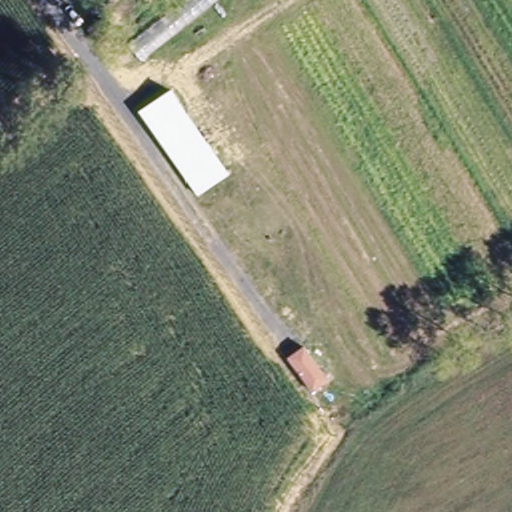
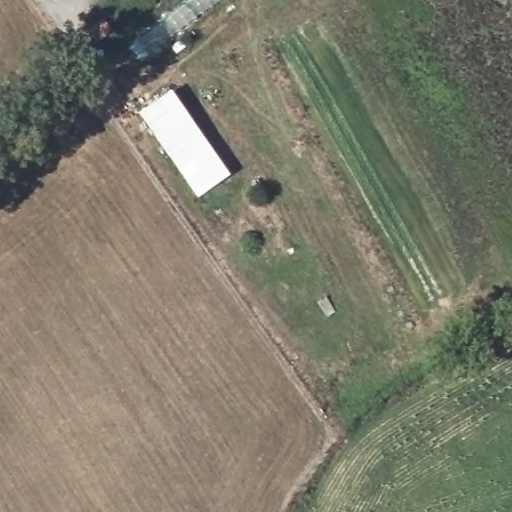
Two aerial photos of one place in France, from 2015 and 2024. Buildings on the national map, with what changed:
unchanged [(142,62),(127,45),(185,0),(219,0),(142,62)]
unchanged [(263,1),(262,0),(265,0),(263,1)]
unchanged [(230,173),(198,195),(139,111),(170,90),(230,173)]

